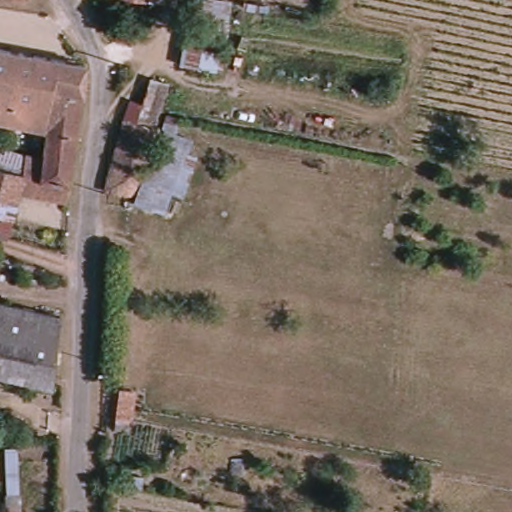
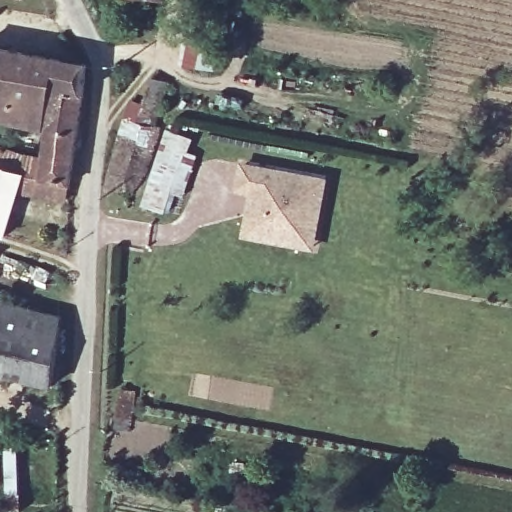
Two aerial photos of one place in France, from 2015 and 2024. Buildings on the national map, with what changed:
unchanged [(230,0),(219,56),(203,52),(214,0),(230,0)]
unchanged [(0,117),(0,48),(77,63),(75,91),(41,89),(40,126),(0,117)]
unchanged [(147,80),(170,89),(164,113),(140,196),(123,192),(140,125),(133,122),(140,101),(147,80)]
unchanged [(37,153),(40,126),(41,89),(75,91),(72,119),(70,148),(67,181),(36,179),(37,153)]
unchanged [(140,101),(133,122),(140,125),(123,192),(100,185),(126,98),(140,101)]
unchanged [(140,196),(164,113),(175,116),(176,130),(190,135),(187,151),(194,153),(176,214),(137,206),(140,196)]
unchanged [(0,231),(0,147),(22,159),(0,231)]
new [(285,241),(247,233),(251,213),(254,200),(255,191),(240,188),(245,163),(327,179),(320,217),(314,246),(285,241)]
unchanged [(45,390),(0,376),(0,304),(56,316),(45,390)]

